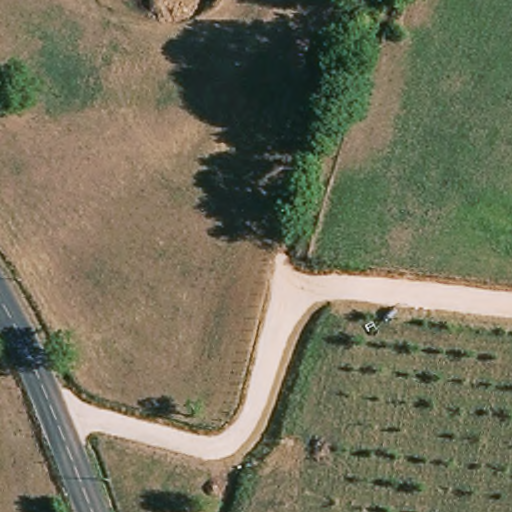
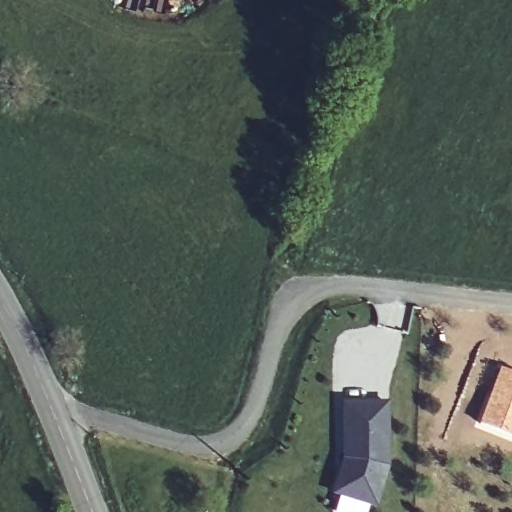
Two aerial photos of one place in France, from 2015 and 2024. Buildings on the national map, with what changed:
new [(499,366),(512,372),(512,436),(477,422),(499,366)]
new [(390,400),(391,462),(376,505),(331,492),(342,459),(341,400),(390,400)]

